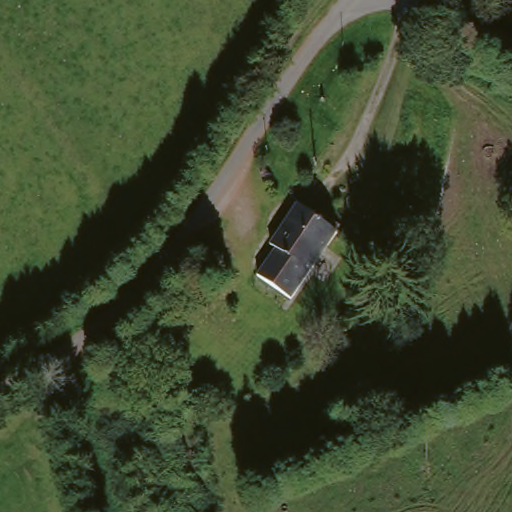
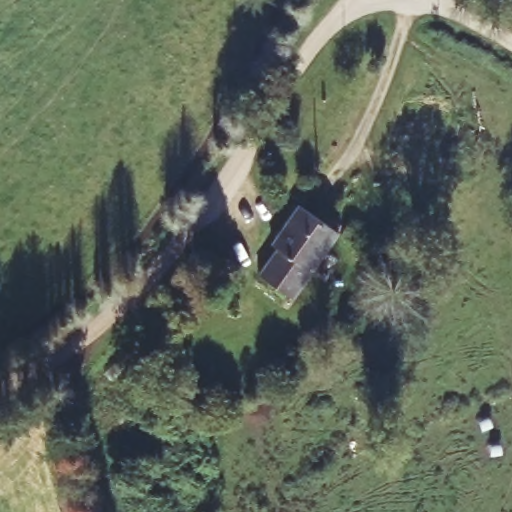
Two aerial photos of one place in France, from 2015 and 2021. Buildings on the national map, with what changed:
unchanged [(337,229),(294,296),(262,275),(278,248),(272,244),(297,203),(337,229)]

